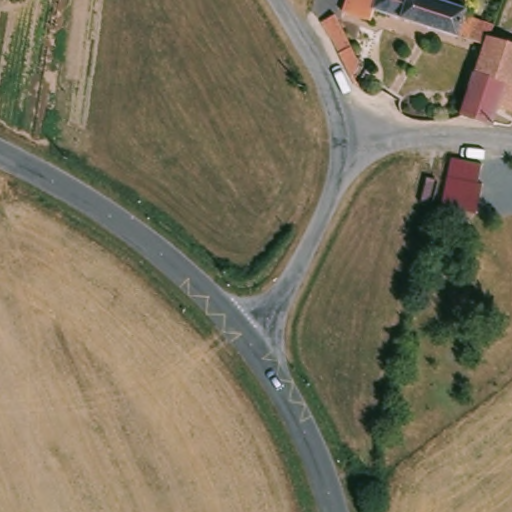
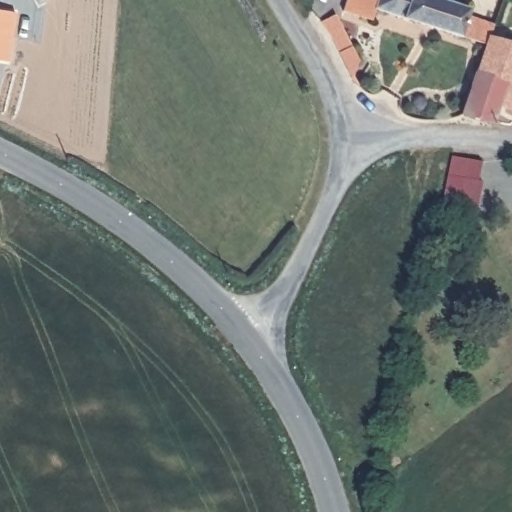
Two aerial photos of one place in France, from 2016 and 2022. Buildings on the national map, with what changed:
unchanged [(489,46),(380,13),(376,24),(342,13),(347,0),(441,0),(473,10),(471,18),(496,26),(492,38),(512,44),(512,111),(502,108),(497,126),(466,116),(480,73),(489,46)]
new [(0,60),(0,9),(16,13),(9,61),(0,60)]
unchanged [(338,43),(327,24),(341,16),(364,63),(357,79),(338,43)]
unchanged [(442,208),(452,159),(482,165),(478,184),(483,185),(477,214),(442,208)]

